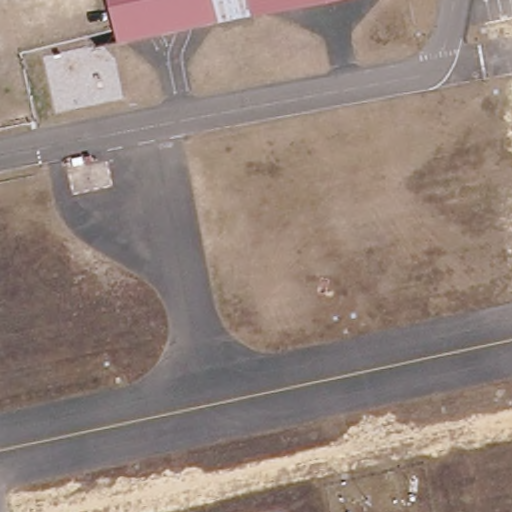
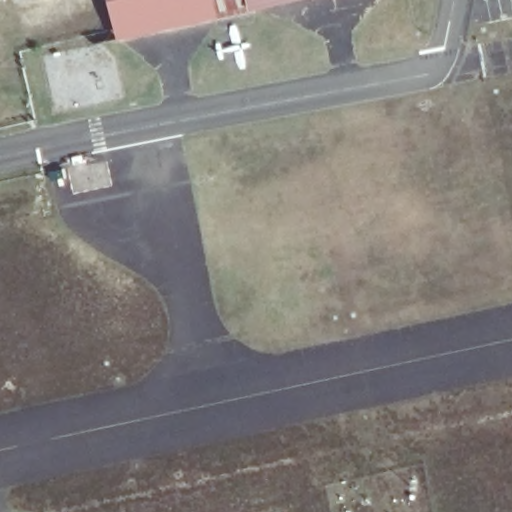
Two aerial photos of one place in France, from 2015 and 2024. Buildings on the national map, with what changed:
unchanged [(109,0),(252,0),(255,14),(119,44),(109,0)]
unchanged [(255,14),(252,0),(320,0),(255,14)]

